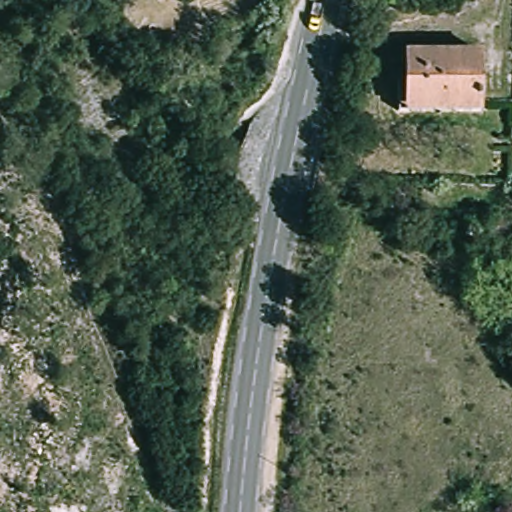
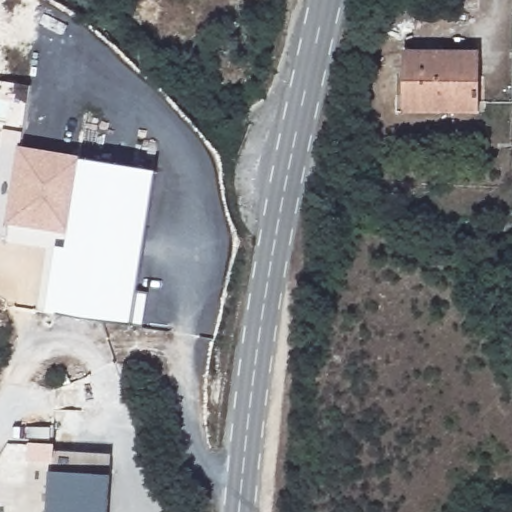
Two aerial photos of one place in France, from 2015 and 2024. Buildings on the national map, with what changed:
unchanged [(477,114),(402,112),(403,52),(478,54),(477,114)]
new [(131,325),(55,312),(45,310),(56,246),(66,248),(68,235),(5,224),(17,145),(80,156),(81,159),(156,171),(131,325)]
new [(110,463),(106,512),(45,512),(50,458),(110,463)]

